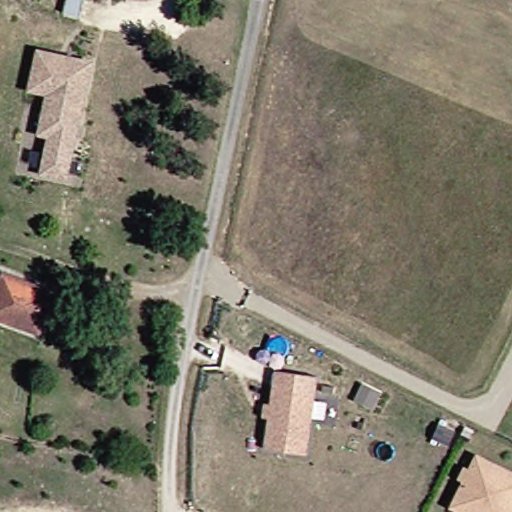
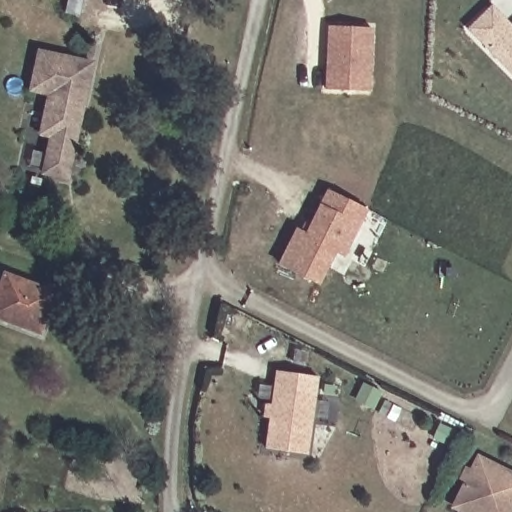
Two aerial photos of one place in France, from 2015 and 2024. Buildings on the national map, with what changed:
unchanged [(72,1),(85,4),(81,22),(68,19),(72,1)]
new [(483,39),(472,28),(494,6),(505,17),(512,24),(512,70),(483,39)]
new [(332,26),(374,27),(371,90),(329,89),(332,26)]
unchanged [(43,170),(50,133),(40,131),(45,105),(48,91),(30,87),(37,49),(90,59),(83,97),(79,112),(66,175),(43,170)]
new [(300,228),(309,233),(332,189),(370,208),(347,254),(338,250),(322,282),(284,263),(300,228)]
unchanged [(63,294),(50,330),(0,312),(0,296),(8,273),(63,294)]
unchanged [(269,449),(273,370),(314,372),(310,451),(269,449)]
unchanged [(475,460),(512,475),(512,512),(455,512),(457,508),(475,460)]

